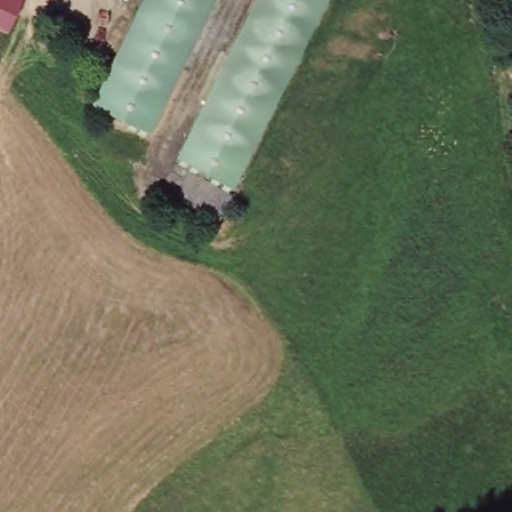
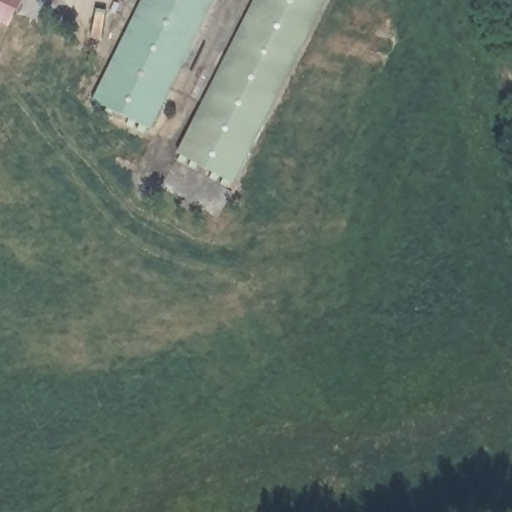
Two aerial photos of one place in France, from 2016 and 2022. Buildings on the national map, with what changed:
unchanged [(0,22),(0,0),(10,0),(4,24),(0,22)]
unchanged [(98,104),(145,0),(212,0),(154,130),(98,104)]
unchanged [(188,165),(262,0),(327,0),(242,191),(188,165)]

